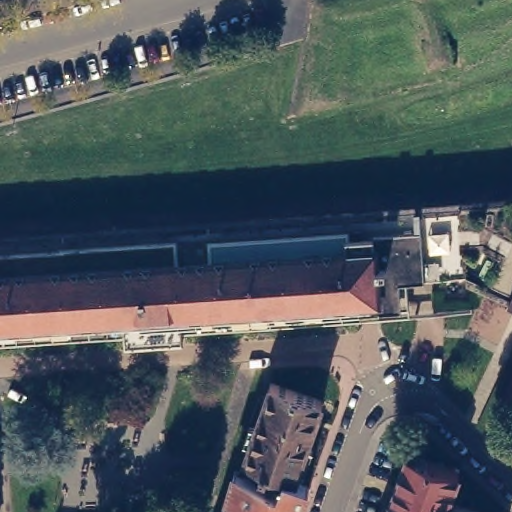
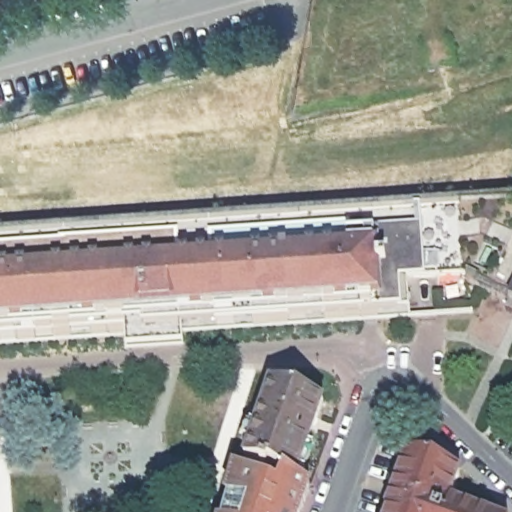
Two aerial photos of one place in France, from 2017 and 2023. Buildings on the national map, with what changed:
unchanged [(450,35),(455,70),(428,74),(422,41),(450,35)]
unchanged [(457,195),(477,193),(512,191),(512,314),(505,311),(508,304),(483,292),(466,283),(465,275),(458,205),(457,195)]
unchanged [(465,275),(405,279),(407,306),(0,333),(0,239),(458,205),(465,275)]
unchanged [(289,474),(273,468),(272,472),(266,470),(267,466),(249,460),(276,383),(328,401),(301,480),(289,474)]
unchanged [(397,490),(395,490),(407,454),(460,472),(450,502),(476,512),(389,512),(397,490)]
unchanged [(306,512),(228,512),(240,470),(283,490),(285,485),(289,474),(301,480),(315,488),(306,512)]

